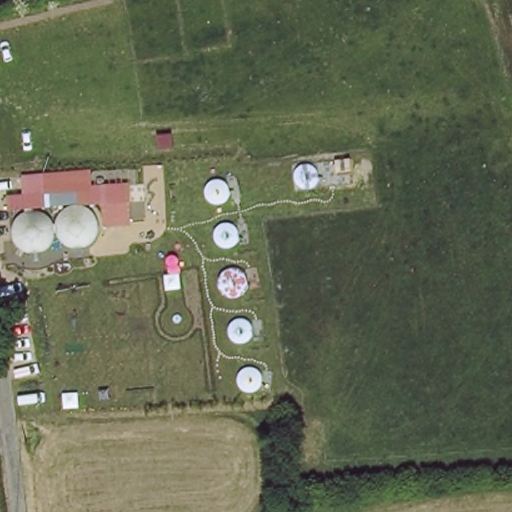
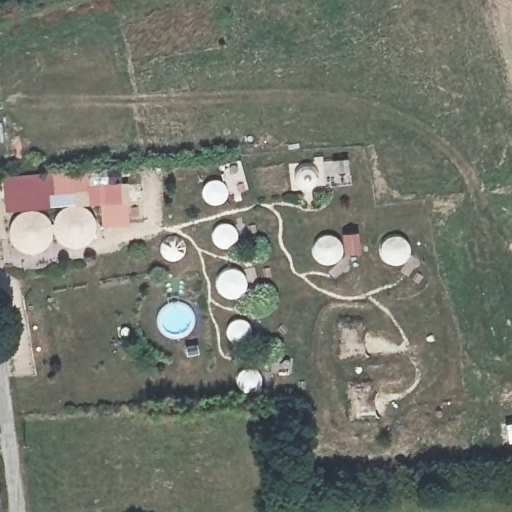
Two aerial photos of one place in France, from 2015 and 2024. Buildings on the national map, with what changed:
unchanged [(130,227),(101,229),(100,205),(90,206),(90,192),(77,193),(77,207),(45,210),(45,175),(89,170),(90,187),(122,186),(122,200),(129,200),(130,227)]
unchanged [(45,210),(6,212),(7,192),(23,191),(23,176),(45,175),(45,210)]

